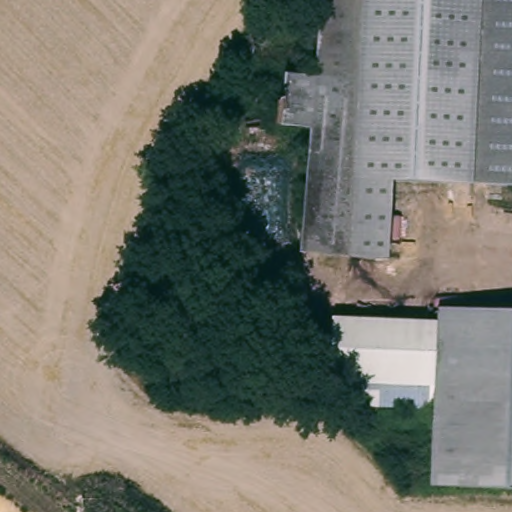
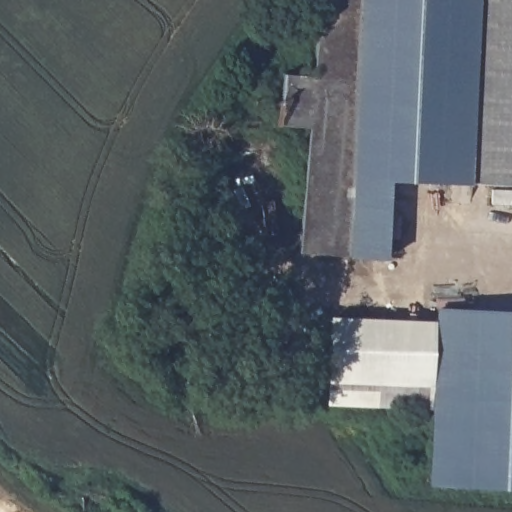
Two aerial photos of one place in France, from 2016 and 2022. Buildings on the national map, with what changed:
unchanged [(313,79),(317,0),(368,0),(362,109),(354,254),(305,252),(311,128),(281,127),(283,80),(283,77),(313,79)]
unchanged [(394,181),(389,256),(354,254),(362,109),(368,0),(482,0),(474,185),(394,181)]
unchanged [(482,0),(512,0),(512,187),(474,185),(482,0)]
unchanged [(443,305),(512,308),(512,480),(434,477),(438,403),(370,400),(330,398),(332,345),(334,314),(442,318),(443,305)]

